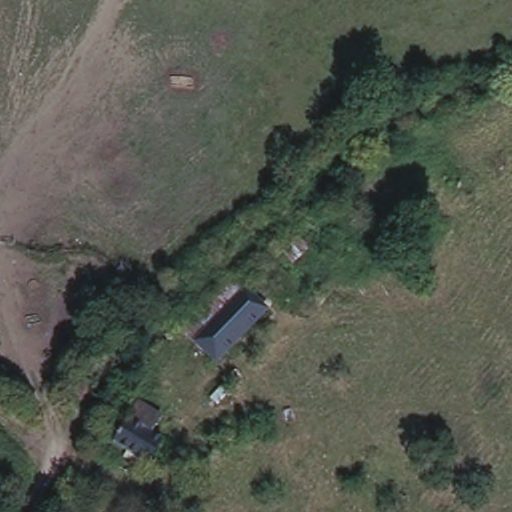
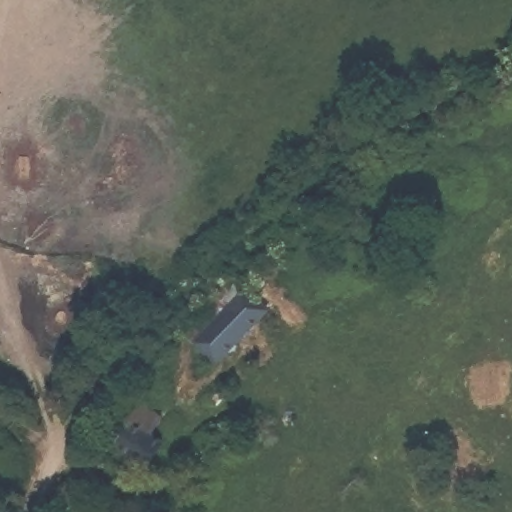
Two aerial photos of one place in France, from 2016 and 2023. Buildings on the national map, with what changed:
unchanged [(247,299),(268,318),(220,369),(200,347),(247,299)]
unchanged [(95,431),(112,402),(172,437),(154,468),(95,431)]

